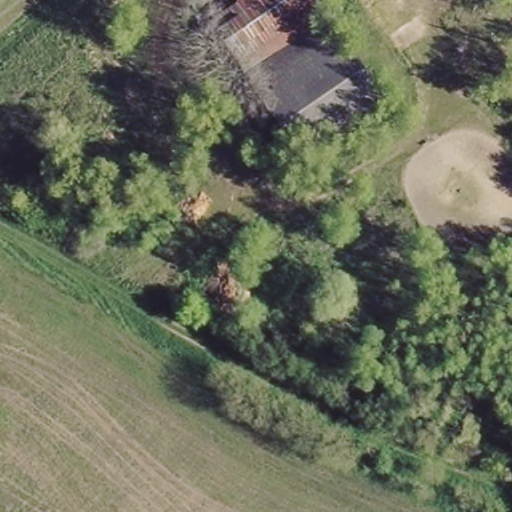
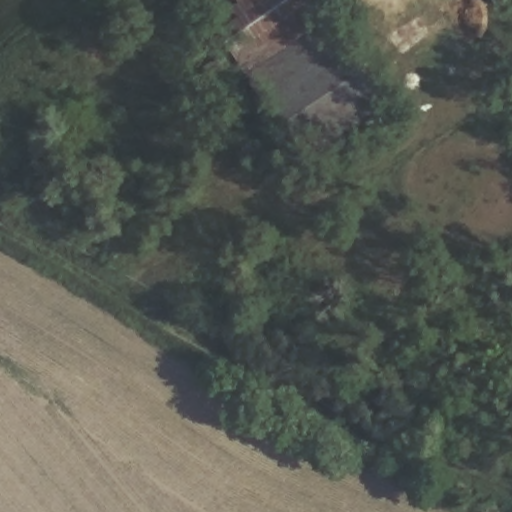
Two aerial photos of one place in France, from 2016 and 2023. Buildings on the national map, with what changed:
unchanged [(318,0),(384,100),(300,155),(234,55),(222,64),(202,34),(219,24),(207,5),(214,0),(318,0)]

